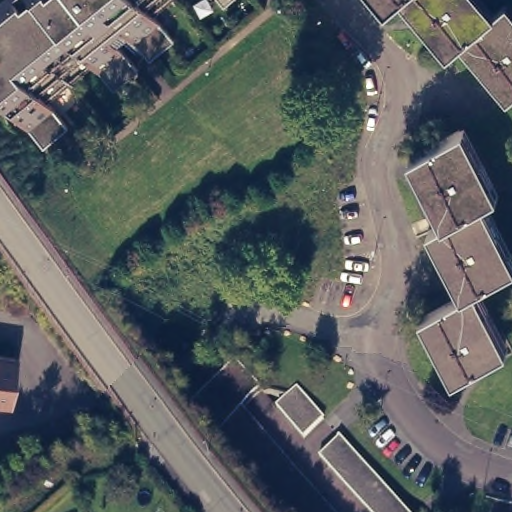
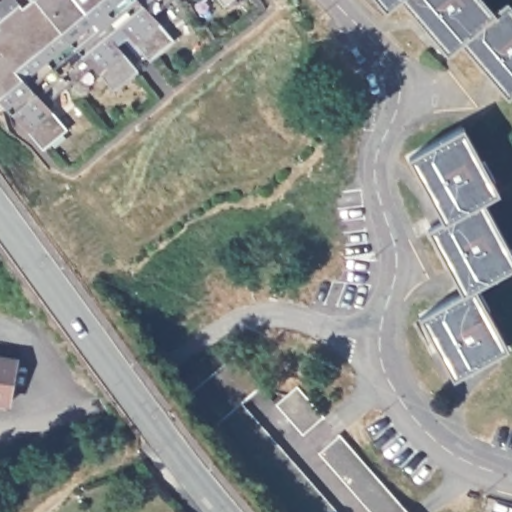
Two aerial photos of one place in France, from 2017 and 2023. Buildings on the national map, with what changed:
unchanged [(174,42),(150,62),(126,34),(115,44),(138,72),(114,92),(90,64),(43,102),(67,131),(43,152),(0,100),(0,9),(2,7),(0,3),(0,0),(167,0),(151,14),(174,42)]
unchanged [(219,0),(233,0),(225,7),(219,0)]
unchanged [(382,0),(393,0),(387,6),(382,0)]
unchanged [(508,92),(462,38),(448,50),(406,0),(480,0),(491,13),(505,2),(512,10),(512,90),(508,92)]
unchanged [(476,279),(510,340),(454,368),(421,307),(463,283),(429,220),(444,211),(410,148),(465,119),(499,182),(485,191),(512,243),(512,258),(476,279)]
unchanged [(287,368),(246,403),(342,512),(301,512),(253,461),(240,437),(226,422),(200,390),(190,380),(230,347),(239,357),(258,342),(262,339),(265,341),(287,368)]
unchanged [(8,401),(0,400),(0,356),(15,359),(8,401)]
unchanged [(296,383),(323,413),(303,431),(276,401),(296,383)]
unchanged [(339,426),(414,512),(379,512),(318,443),(339,426)]

